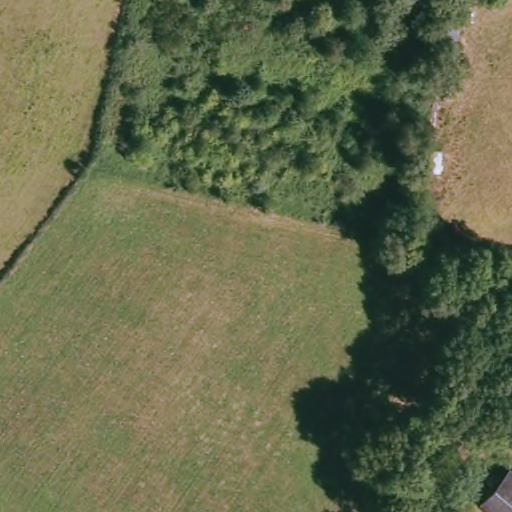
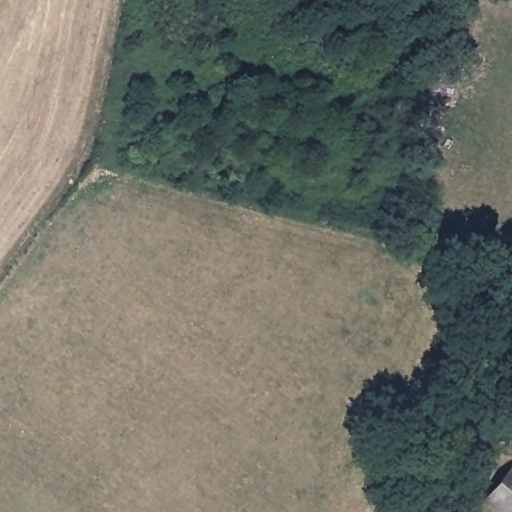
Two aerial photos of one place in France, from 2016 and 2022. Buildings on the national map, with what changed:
unchanged [(506,469),(512,475),(512,512),(493,512),(480,501),(506,469)]

